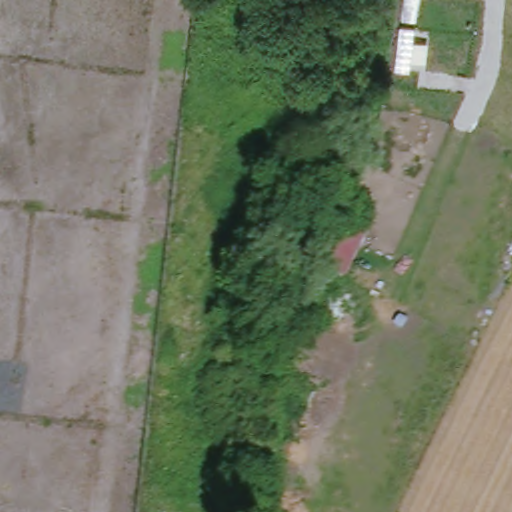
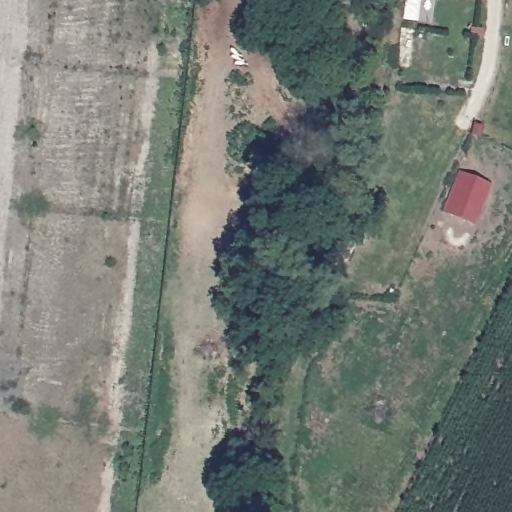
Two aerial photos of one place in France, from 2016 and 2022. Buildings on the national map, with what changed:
new [(459,171),(492,184),(477,225),(444,211),(459,171)]

